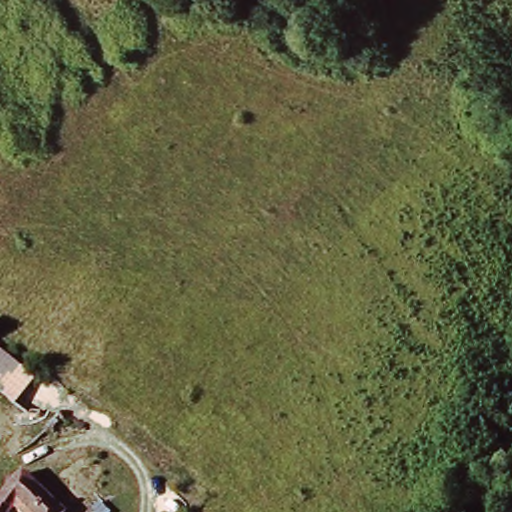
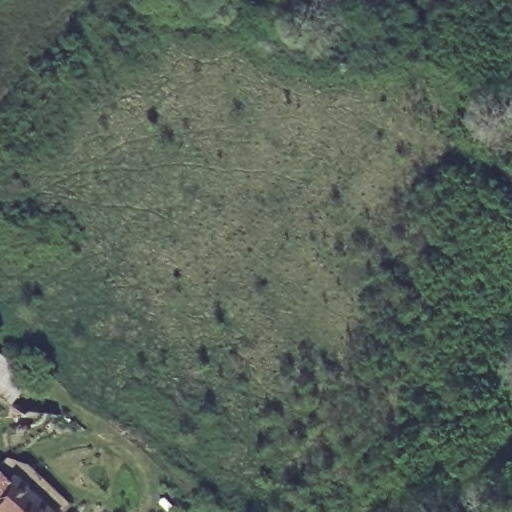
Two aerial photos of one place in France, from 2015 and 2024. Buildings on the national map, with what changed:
unchanged [(35,379),(14,405),(0,394),(0,351),(35,379)]
unchanged [(17,473),(61,512),(15,512),(9,507),(4,512),(0,512),(0,491),(17,473)]

